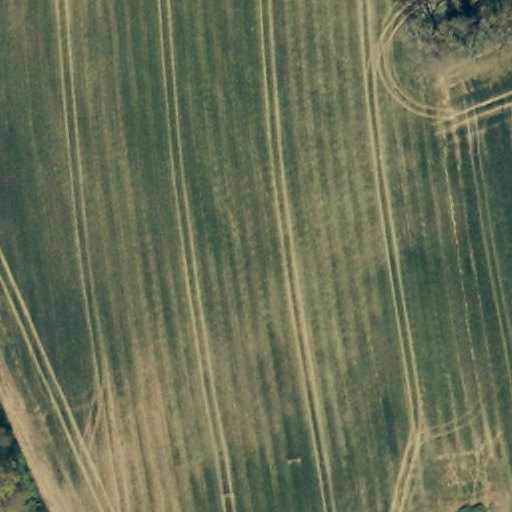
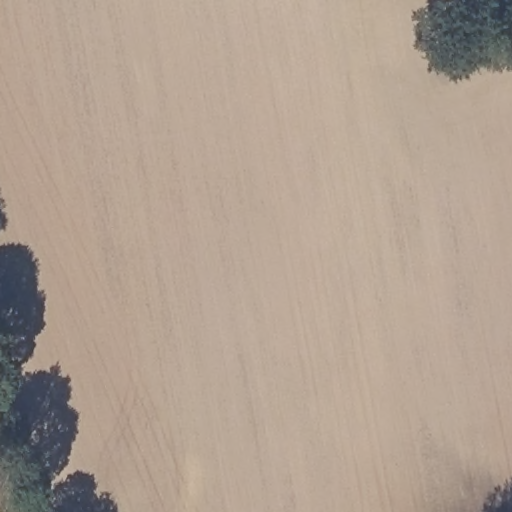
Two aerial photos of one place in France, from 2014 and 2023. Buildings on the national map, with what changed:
[]

